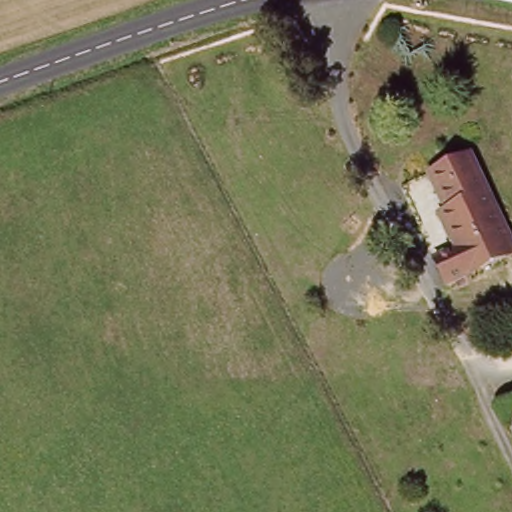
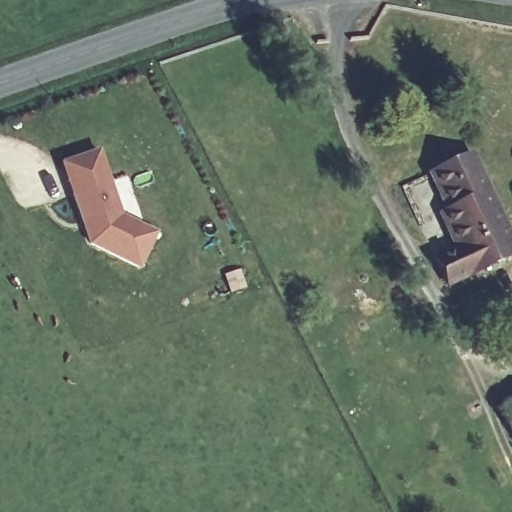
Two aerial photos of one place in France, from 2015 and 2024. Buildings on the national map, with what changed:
new [(155,235),(138,269),(90,247),(67,182),(61,167),(97,155),(102,170),(120,219),(155,235)]
unchanged [(432,217),(439,213),(423,176),(466,157),(511,258),(442,289),(429,260),(448,251),(432,217)]
unchanged [(512,403),(512,436),(499,411),(512,403)]

